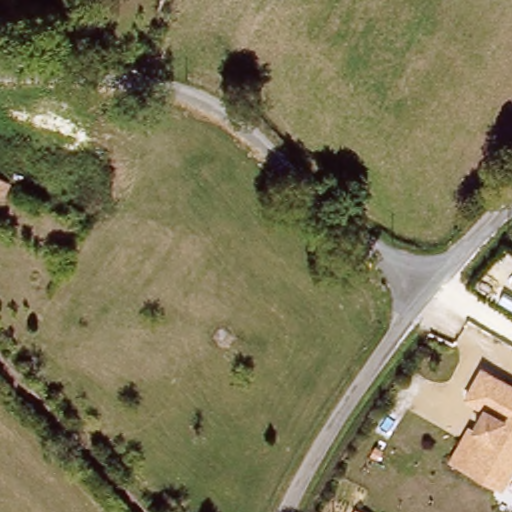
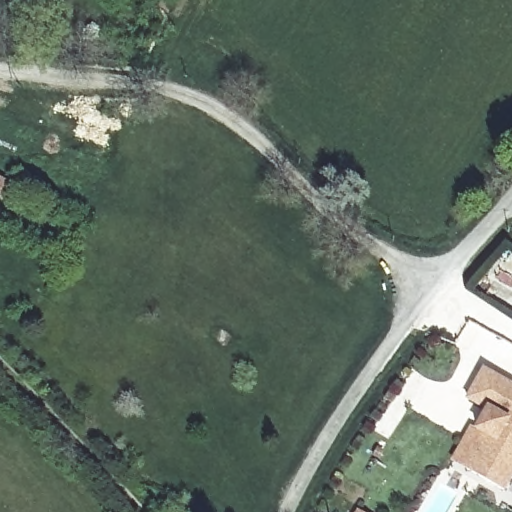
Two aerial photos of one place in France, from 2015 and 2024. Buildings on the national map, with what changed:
unchanged [(0,191),(0,171),(10,176),(2,192),(0,191)]
unchanged [(512,470),(500,491),(464,471),(483,436),(473,430),(484,411),(473,405),(465,400),(480,371),(494,379),(512,389),(512,470)]

